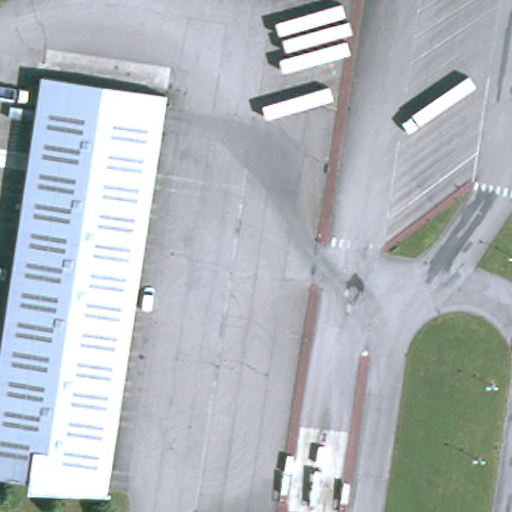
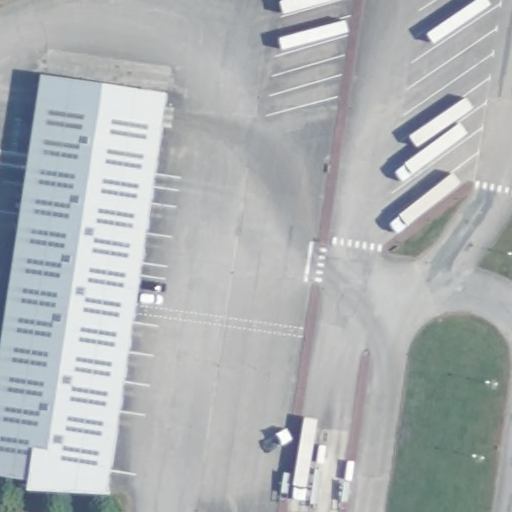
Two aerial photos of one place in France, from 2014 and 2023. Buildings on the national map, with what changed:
unchanged [(49,79),(172,96),(113,492),(0,476),(0,405),(49,79)]

